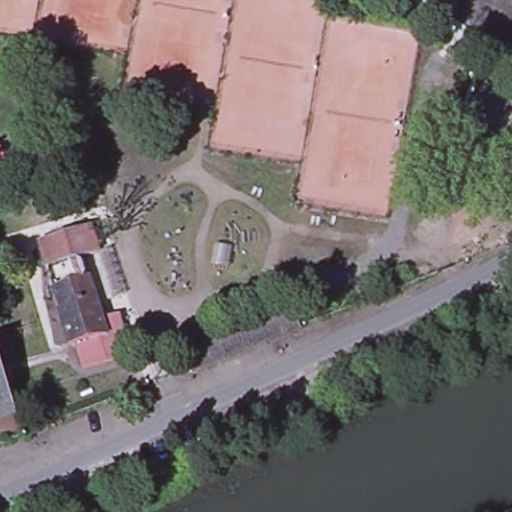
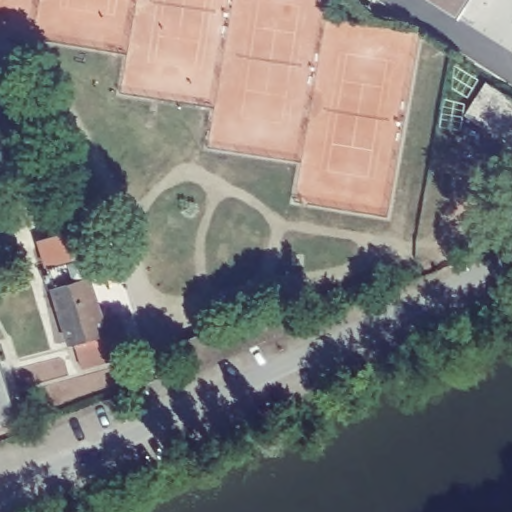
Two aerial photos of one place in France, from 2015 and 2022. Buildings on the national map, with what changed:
unchanged [(512,140),(469,112),(488,84),(512,100),(512,140)]
unchanged [(102,252),(117,250),(131,298),(104,307),(107,316),(121,311),(123,311),(126,320),(126,322),(122,323),(132,355),(82,368),(74,341),(67,343),(50,287),(55,285),(50,267),(47,268),(37,240),(92,224),(102,252)]
unchanged [(183,345),(294,301),(303,325),(192,368),(182,372),(180,368),(190,364),(183,345)]
unchanged [(20,430),(0,435),(0,359),(20,430)]

